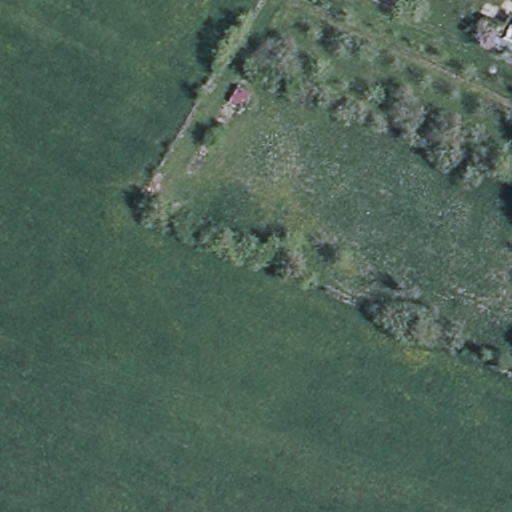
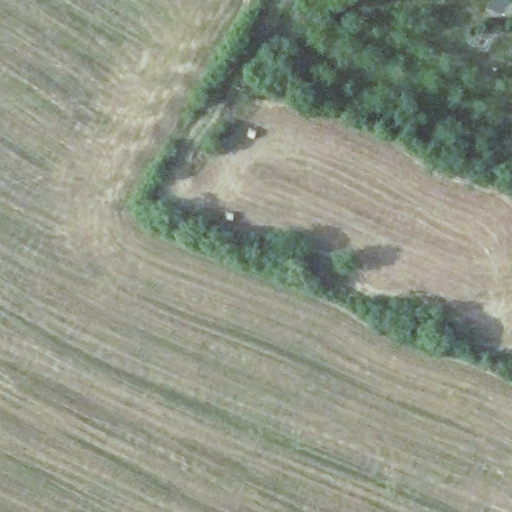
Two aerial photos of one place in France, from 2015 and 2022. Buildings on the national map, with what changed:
[]

